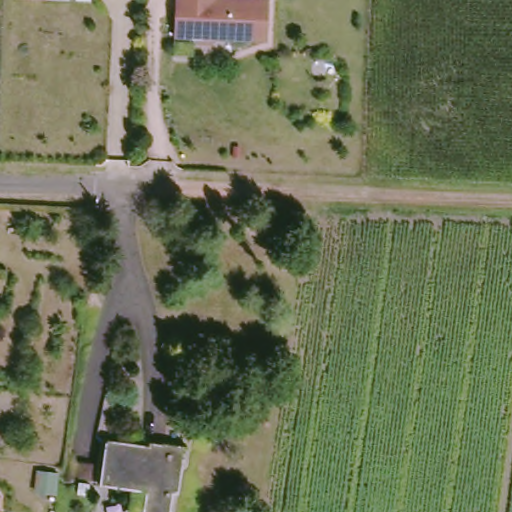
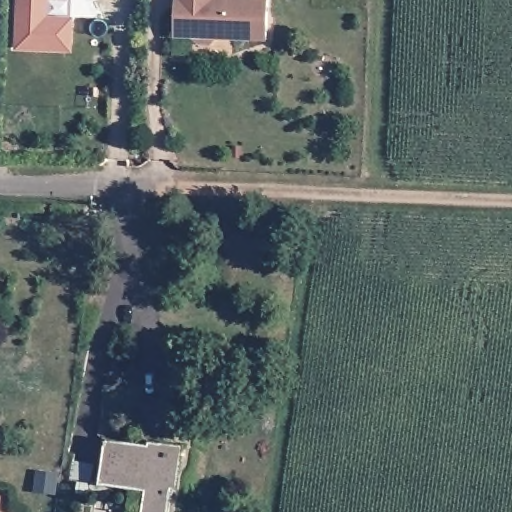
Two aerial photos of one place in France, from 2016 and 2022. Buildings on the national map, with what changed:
new [(72,18),(71,50),(18,49),(19,0),(41,0),(40,17),(72,18)]
unchanged [(270,39),(218,36),(212,42),(200,41),(195,35),(175,35),(176,18),(176,9),(181,10),(181,0),(270,0),(270,21),(270,39)]
unchanged [(195,394),(198,364),(232,367),(229,397),(195,394)]
unchanged [(167,492),(164,512),(142,512),(145,487),(96,480),(102,437),(159,443),(160,435),(178,437),(171,492),(167,492)]
unchanged [(58,476),(55,496),(35,492),(38,472),(58,476)]

